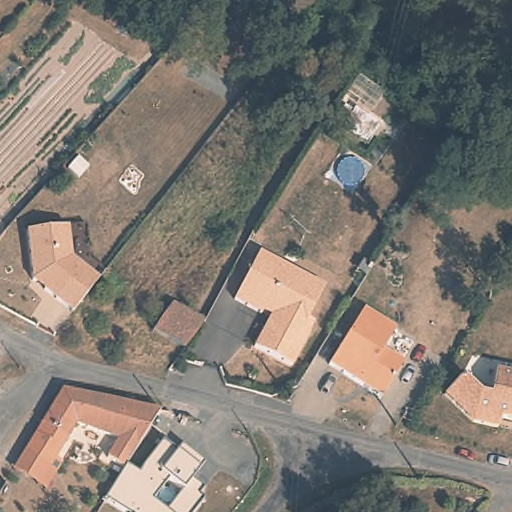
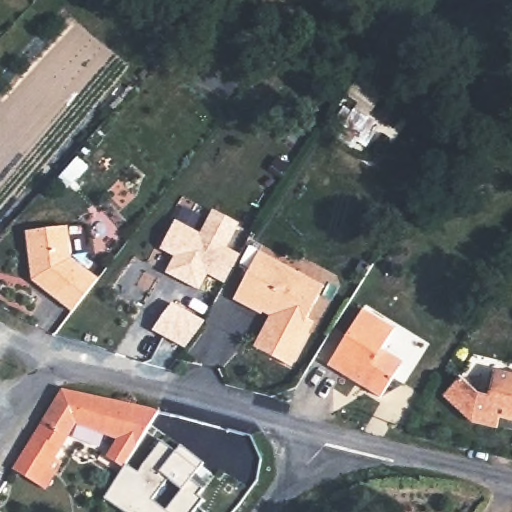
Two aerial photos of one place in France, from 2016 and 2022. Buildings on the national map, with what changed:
new [(224,249),(238,255),(223,283),(204,273),(197,288),(164,271),(172,255),(158,248),(173,218),(199,232),(206,218),(232,233),(224,249)]
unchanged [(68,224),(73,259),(97,278),(72,312),(30,279),(24,232),(68,224)]
unchanged [(329,287),(290,367),(252,346),(267,318),(231,300),(257,249),(329,287)]
unchanged [(152,330),(172,303),(204,321),(184,347),(152,330)]
unchanged [(394,329),(382,349),(401,362),(379,397),(326,364),(361,309),(394,329)]
unchanged [(512,421),(501,419),(498,431),(471,425),(442,398),(459,376),(477,392),(489,394),(495,372),(512,375),(512,421)]
unchanged [(137,445),(74,425),(48,465),(24,451),(35,433),(40,435),(45,425),(42,422),(51,407),(62,390),(86,395),(159,411),(137,445)]
unchanged [(127,464),(140,473),(161,441),(175,452),(180,445),(202,463),(194,475),(205,483),(197,498),(201,500),(192,512),(126,512),(105,498),(123,467),(105,456),(116,438),(137,445),(127,464)]
unchanged [(64,463),(45,491),(12,469),(24,451),(48,465),(53,457),(64,463)]

